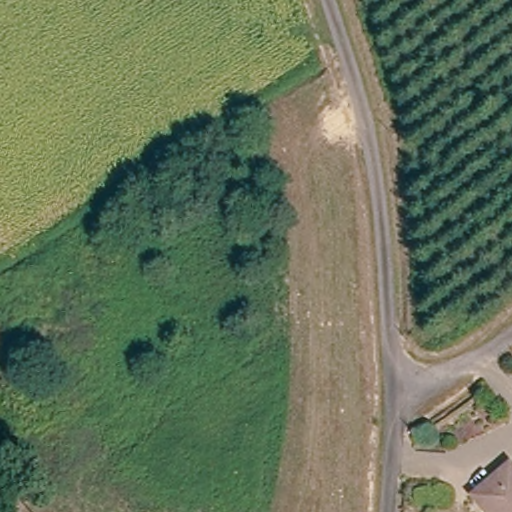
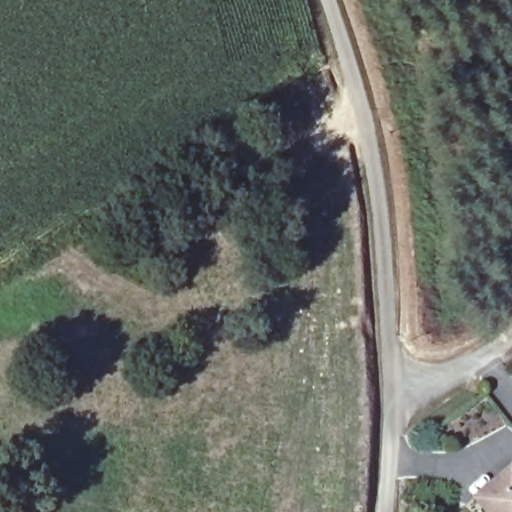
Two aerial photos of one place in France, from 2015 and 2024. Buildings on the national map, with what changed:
unchanged [(512,467),(512,512),(481,512),(471,499),(496,477),(510,465),(512,467)]

